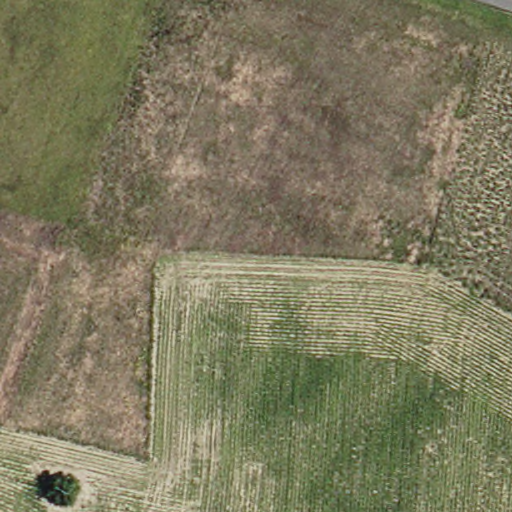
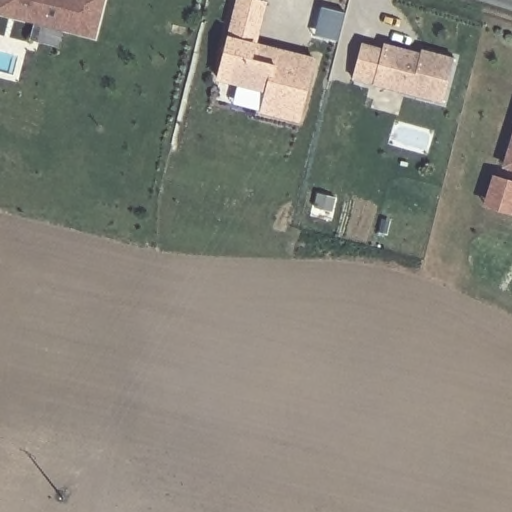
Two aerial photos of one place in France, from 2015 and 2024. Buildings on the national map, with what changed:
new [(0,17),(0,0),(105,0),(95,39),(0,17)]
new [(267,4),(257,45),(280,51),(287,53),(316,60),(300,121),(265,112),(269,91),(220,79),(240,0),(252,0),(267,4)]
new [(442,103),(372,85),(383,42),(421,51),(421,49),(455,57),(442,103)]
new [(500,168),(512,131),(512,171),(500,168)]

